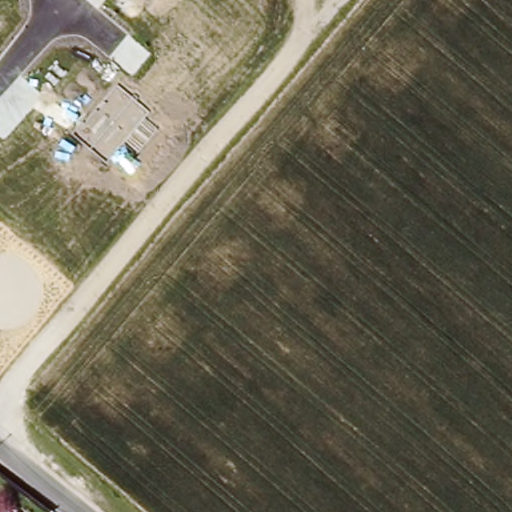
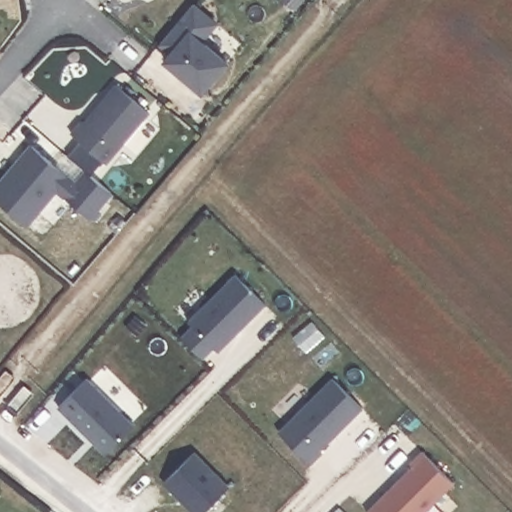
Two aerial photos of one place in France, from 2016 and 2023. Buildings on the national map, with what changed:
new [(194,5),(217,24),(203,41),(228,64),(203,93),(166,61),(172,54),(161,44),(194,5)]
new [(82,122),(84,124),(96,110),(98,112),(105,104),(103,102),(117,85),(150,112),(107,164),(72,134),(82,122)]
new [(31,146),(76,183),(86,172),(113,194),(90,219),(57,191),(28,226),(0,203),(0,184),(31,146)]
new [(193,325),(188,321),(236,274),(266,305),(219,352),(216,347),(203,359),(180,336),(193,325)]
new [(333,378),(364,409),(311,463),(279,432),(333,378)]
new [(87,379),(134,426),(106,454),(59,407),(87,379)]
new [(196,451),(231,486),(204,512),(192,512),(164,483),(196,451)]
new [(427,455),(454,483),(426,512),(368,512),(427,455)]

